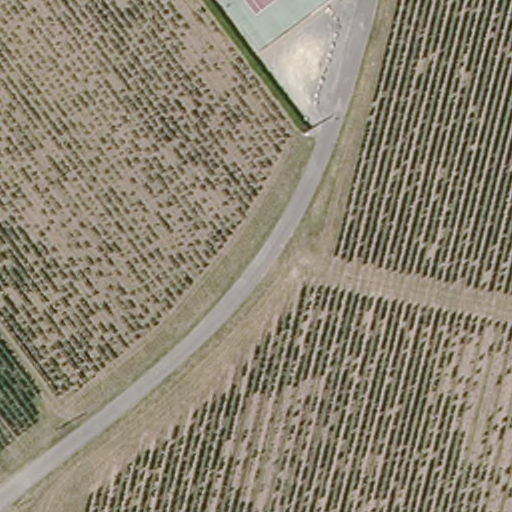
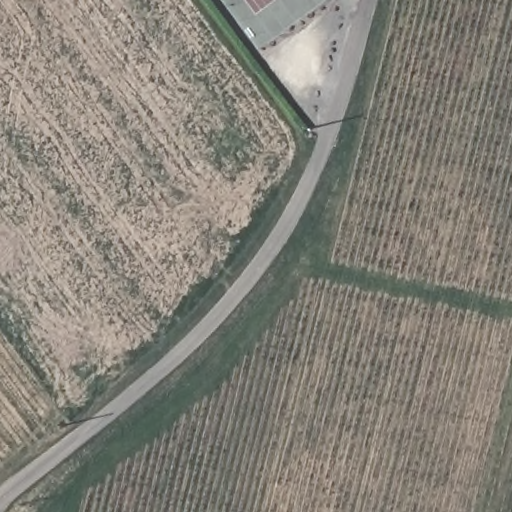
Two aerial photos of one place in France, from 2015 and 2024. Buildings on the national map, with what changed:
[]

